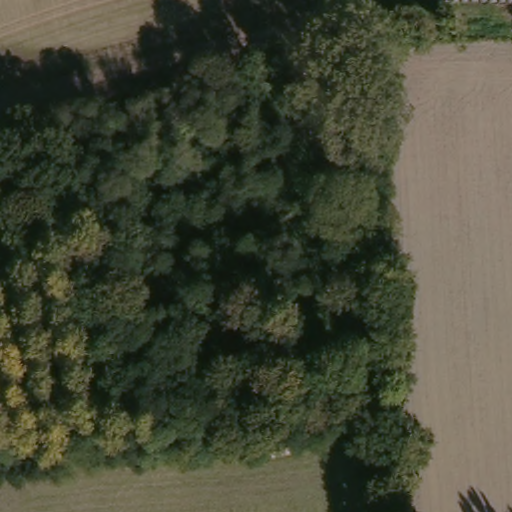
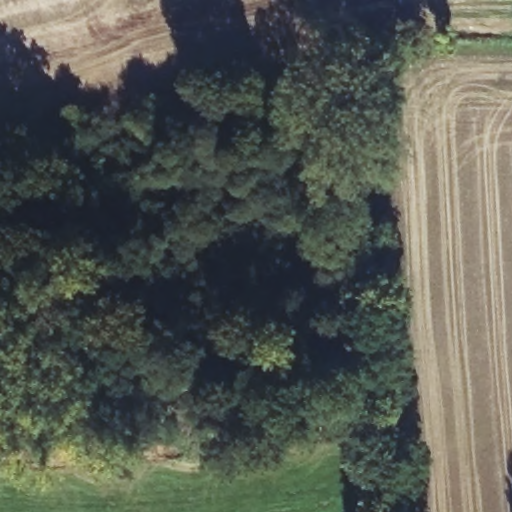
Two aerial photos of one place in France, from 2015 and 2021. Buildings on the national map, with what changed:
[]

